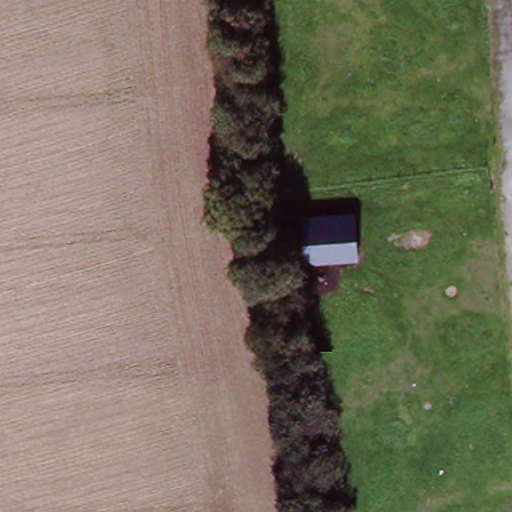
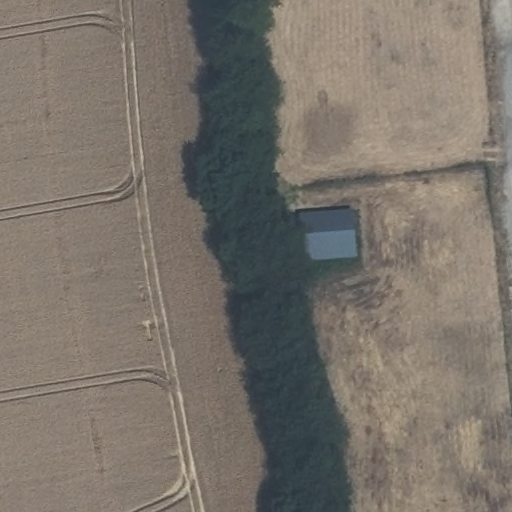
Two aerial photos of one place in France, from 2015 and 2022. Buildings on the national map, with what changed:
unchanged [(352,217),(357,257),(306,263),(302,222),(352,217)]

